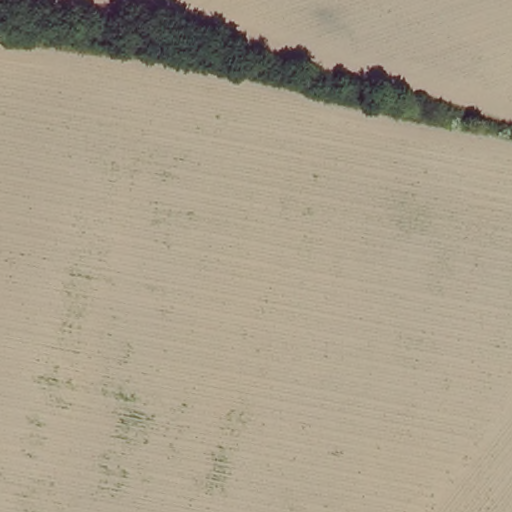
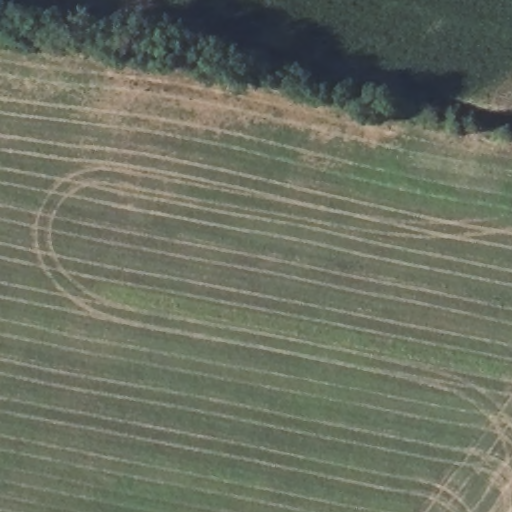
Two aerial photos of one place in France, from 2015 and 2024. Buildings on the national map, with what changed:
[]

